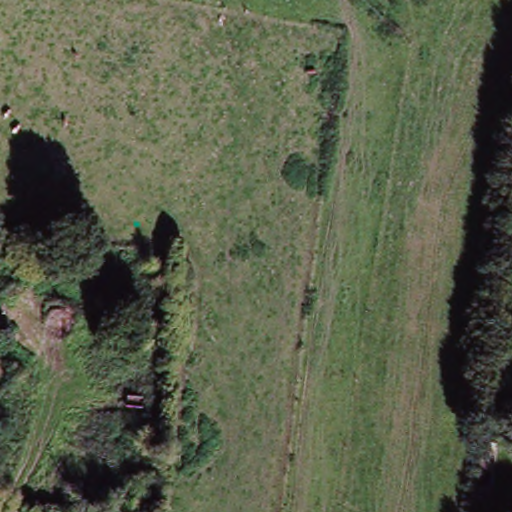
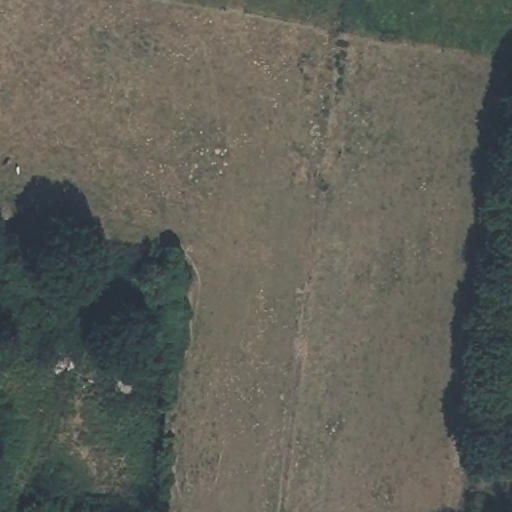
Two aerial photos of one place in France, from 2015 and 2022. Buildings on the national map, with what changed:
[]

